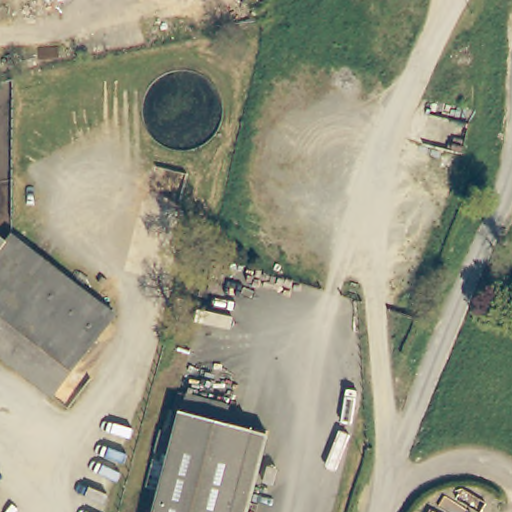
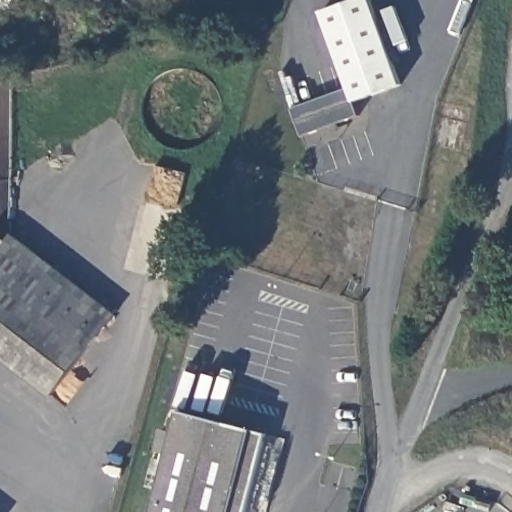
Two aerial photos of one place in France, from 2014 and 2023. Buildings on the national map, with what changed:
new [(355,103),(358,115),(301,136),(292,109),(348,88),(321,12),(353,0),(371,0),(402,84),(355,103)]
unchanged [(49,392),(0,356),(0,237),(4,232),(109,309),(49,392)]
unchanged [(153,512),(166,462),(153,458),(160,435),(172,438),(178,416),(183,398),(226,408),(221,426),(265,438),(246,512),(153,512)]

